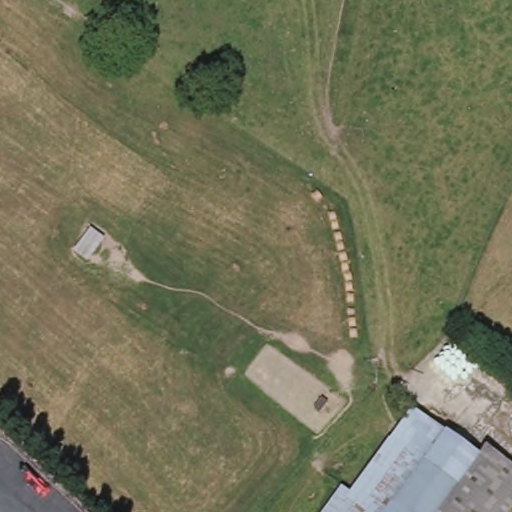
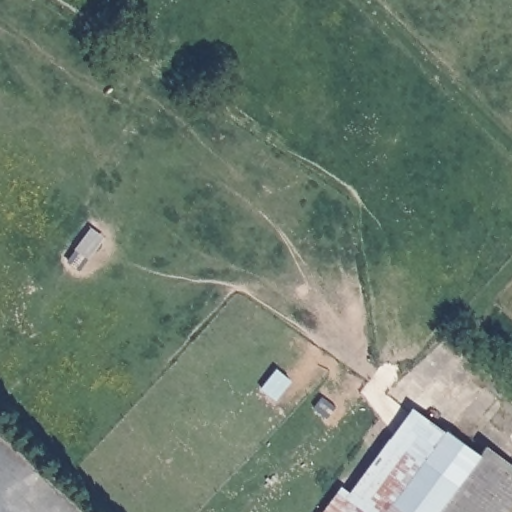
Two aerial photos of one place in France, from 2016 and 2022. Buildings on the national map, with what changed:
unchanged [(427,407),(488,456),(498,445),(512,457),(512,512),(470,512),(410,444),(403,436),(427,407)]
unchanged [(410,444),(470,512),(325,512),(352,478),(362,486),(403,436),(410,444)]

